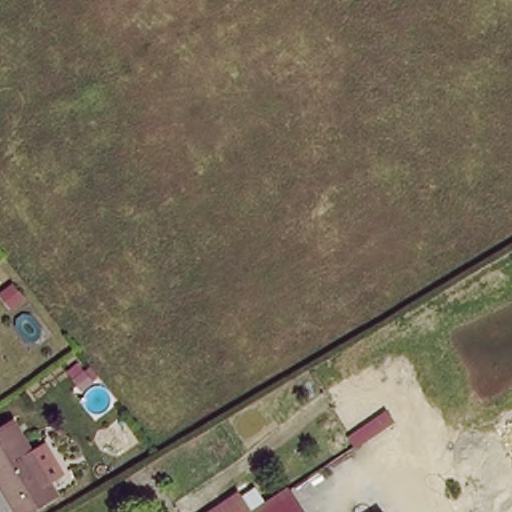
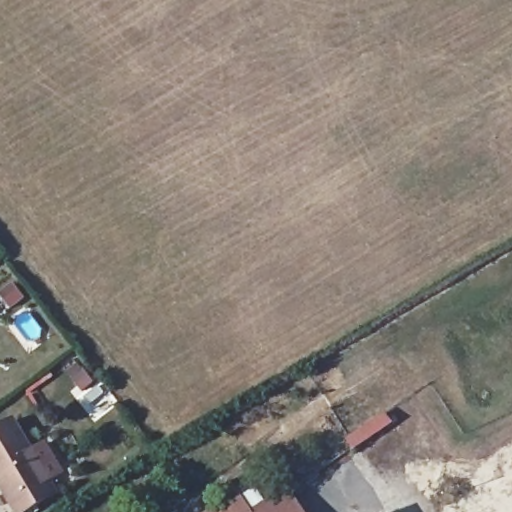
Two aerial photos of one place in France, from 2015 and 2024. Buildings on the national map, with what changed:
unchanged [(57,488),(19,510),(0,477),(0,423),(14,415),(57,488)]
unchanged [(235,491),(248,509),(282,485),(300,512),(202,512),(235,491)]

